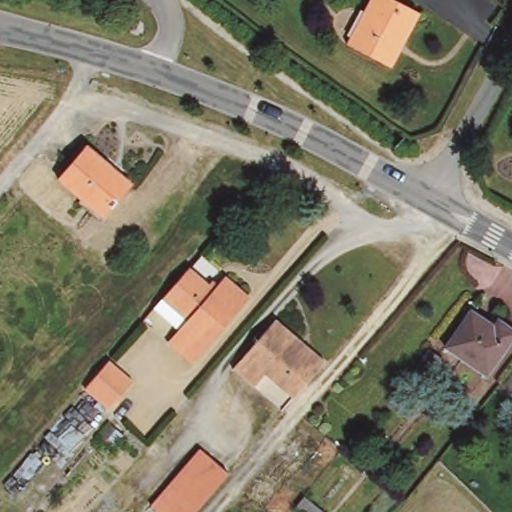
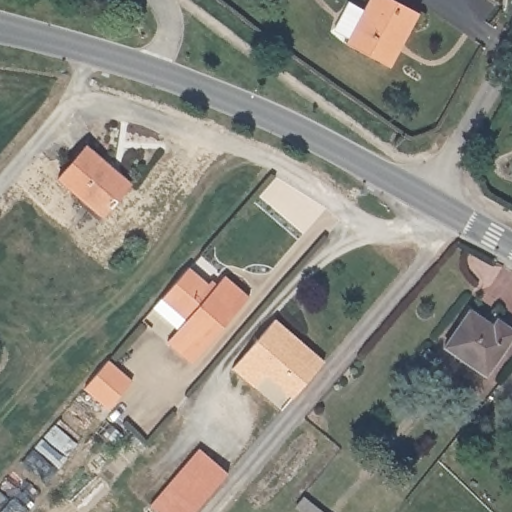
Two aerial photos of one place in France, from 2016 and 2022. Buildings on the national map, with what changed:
unchanged [(381,65),(344,44),(367,0),(394,0),(418,13),(402,43),(387,69),(381,65)]
unchanged [(81,150),(127,184),(100,217),(55,180),(81,150)]
unchanged [(209,287),(220,274),(244,294),(187,361),(162,341),(172,330),(147,309),(184,265),(209,287)]
unchanged [(464,310),(486,325),(491,318),(510,332),(479,372),(438,344),(464,310)]
unchanged [(319,359),(292,397),(262,374),(251,388),(230,369),(274,319),(319,359)]
unchanged [(103,361),(127,380),(104,409),(80,389),(103,361)]
unchanged [(156,512),(148,505),(196,448),(224,470),(190,512),(156,512)]

